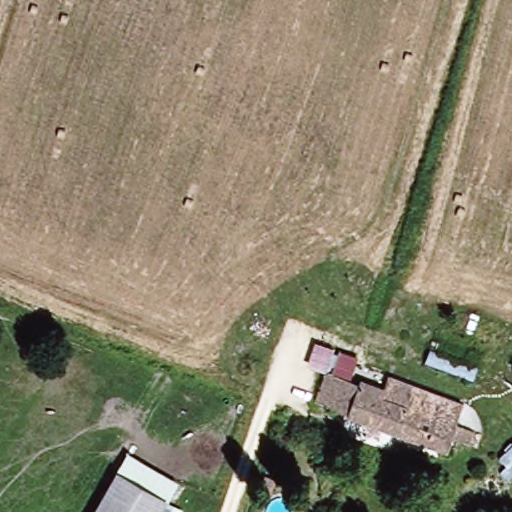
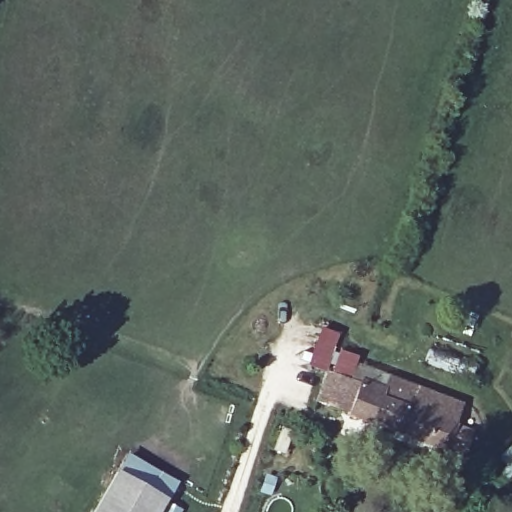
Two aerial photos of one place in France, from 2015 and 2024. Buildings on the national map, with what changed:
unchanged [(360,383),(361,378),(384,387),(391,373),(465,403),(458,424),(474,431),(470,443),(452,436),(447,450),(349,413),(317,402),(323,371),(360,383)]
unchanged [(178,485),(169,502),(163,512),(95,512),(115,476),(129,455),(178,485)]

